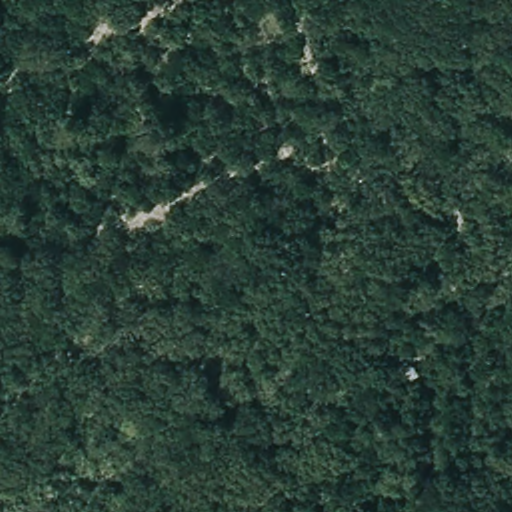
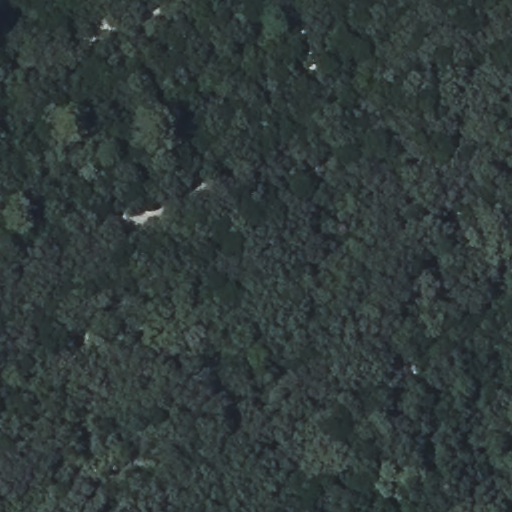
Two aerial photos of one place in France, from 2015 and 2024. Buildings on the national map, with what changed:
unchanged [(411,389),(394,376),(405,360),(424,376),(411,389)]

